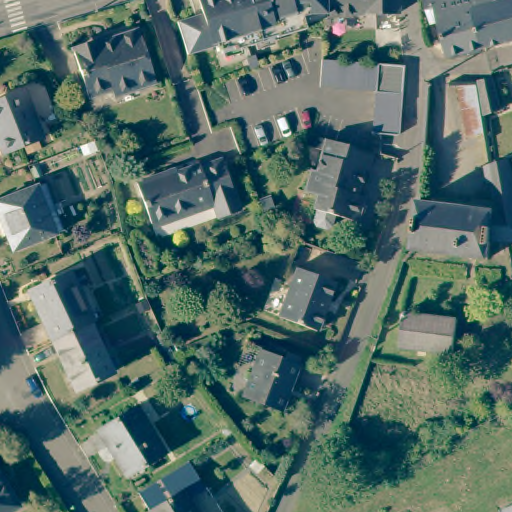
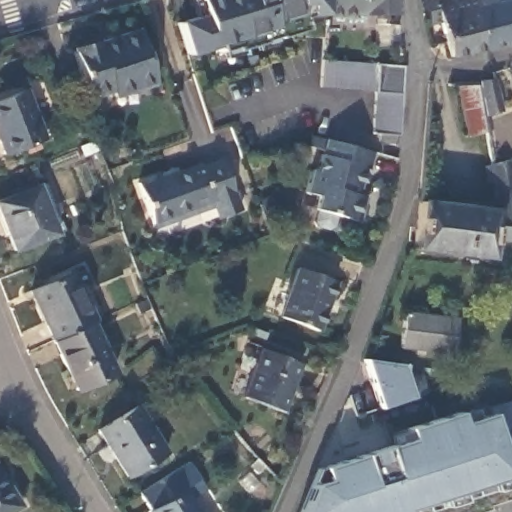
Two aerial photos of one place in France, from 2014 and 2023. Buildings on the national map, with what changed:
unchanged [(325,1),(325,9),(325,10),(325,12),(303,18),(305,23),(232,45),(231,42),(217,46),(215,40),(186,49),(181,32),(177,17),(192,12),(189,0),(325,0),(325,1)]
unchanged [(397,8),(325,10),(325,9),(325,1),(325,0),(397,0),(397,8)]
unchanged [(433,26),(427,0),(495,0),(496,4),(512,0),(512,42),(486,49),(452,57),(443,23),(433,26)]
unchanged [(136,29),(155,81),(114,95),(111,89),(89,97),(72,50),(136,29)]
unchanged [(397,134),(395,135),(371,133),(370,131),(375,90),(320,86),(322,59),(345,61),(395,65),(396,65),(401,65),(397,134)]
unchanged [(490,81),(498,111),(482,115),(478,83),(490,81)]
unchanged [(25,88),(44,137),(2,152),(0,146),(0,98),(25,88)]
unchanged [(366,174),(362,173),(354,198),(361,201),(359,207),(361,211),(358,220),(355,220),(353,225),(308,211),(312,197),(301,194),(308,171),(312,172),(321,141),(347,149),(371,156),(366,174)]
unchanged [(496,209),(487,182),(480,184),(476,168),(489,164),(492,163),(504,161),(505,165),(506,167),(512,183),(512,239),(499,238),(498,250),(490,249),(488,257),(411,249),(416,202),(496,209)]
unchanged [(160,177),(161,181),(200,167),(201,172),(223,164),(240,212),(219,219),(213,204),(195,211),(196,214),(170,223),(170,220),(151,227),(137,186),(160,177)]
unchanged [(47,182),(65,230),(14,249),(0,213),(0,199),(47,182)]
unchanged [(300,265),(336,280),(317,328),(280,314),(300,265)]
unchanged [(29,291),(69,271),(94,322),(90,324),(53,341),(29,291)]
unchanged [(406,314),(457,318),(453,355),(402,351),(406,314)]
unchanged [(90,324),(114,372),(77,389),(53,341),(90,324)]
unchanged [(261,347),(298,362),(280,409),(242,394),(261,347)]
new [(380,408),(365,360),(405,365),(413,397),(380,408)]
unchanged [(136,404),(165,451),(127,475),(98,428),(136,404)]
new [(512,474),(512,478),(403,510),(404,512),(298,512),(310,485),(325,480),(320,468),(408,440),(407,430),(461,414),(464,421),(492,413),(512,404),(512,428),(498,432),(512,474)]
unchanged [(141,493),(190,462),(206,491),(189,501),(181,489),(150,509),(141,493)]
unchanged [(20,498),(0,505),(0,471),(20,498)]
unchanged [(196,512),(150,512),(149,510),(181,489),(196,512)]

